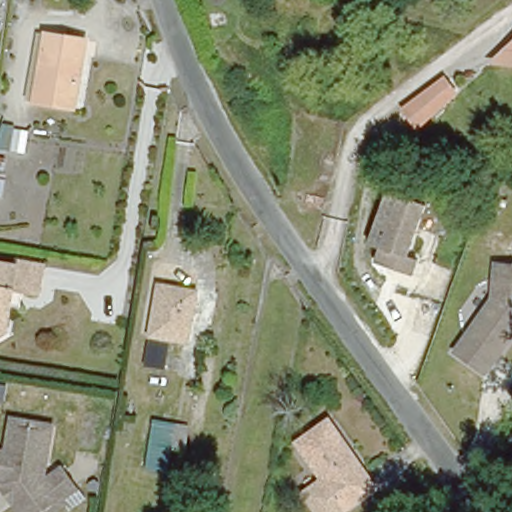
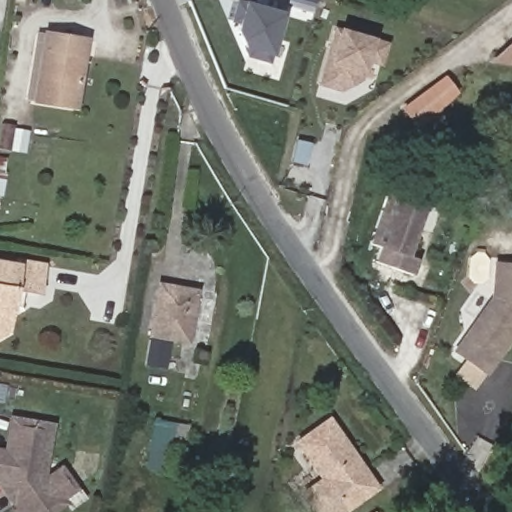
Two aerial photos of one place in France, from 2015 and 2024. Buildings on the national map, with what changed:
new [(235,0),(237,0),(244,2),(285,14),(272,57),(270,64),(248,58),(244,50),(235,33),(239,24),(230,22),(235,0)]
new [(318,85),(333,28),(338,29),(373,39),(387,43),(381,67),(368,63),(364,75),(363,79),(341,92),(318,85)]
unchanged [(86,41),(75,108),(41,102),(35,102),(45,35),(52,36),(86,41)]
unchanged [(487,61),(512,38),(512,64),(487,61)]
unchanged [(447,82),(456,97),(415,124),(405,109),(447,82)]
unchanged [(14,126),(10,150),(0,148),(0,139),(2,125),(14,126)]
unchanged [(2,195),(0,195),(0,174),(5,175),(2,195)]
unchanged [(425,202),(407,255),(418,258),(413,273),(375,260),(380,245),(370,242),(388,189),(425,202)]
unchanged [(11,256),(39,260),(34,290),(18,287),(15,302),(6,300),(2,326),(1,326),(0,326),(0,259),(10,261),(11,256)]
unchanged [(512,271),(512,345),(487,380),(456,359),(493,305),(496,270),(512,271)]
unchanged [(160,285),(195,291),(186,340),(151,335),(160,285)]
new [(0,393),(0,386),(1,387),(0,393)]
unchanged [(7,418),(45,424),(47,424),(40,473),(44,479),(59,470),(71,489),(57,498),(55,507),(48,512),(17,512),(10,503),(0,487),(0,451),(2,451),(7,418)]
unchanged [(155,420),(190,425),(185,451),(170,449),(166,472),(146,469),(155,420)]
unchanged [(300,448),(331,426),(376,491),(347,512),(319,512),(307,496),(324,483),(300,448)]
unchanged [(377,512),(371,512),(375,509),(377,512)]

